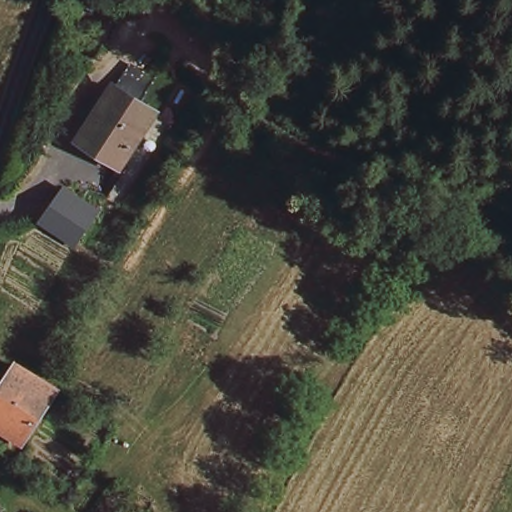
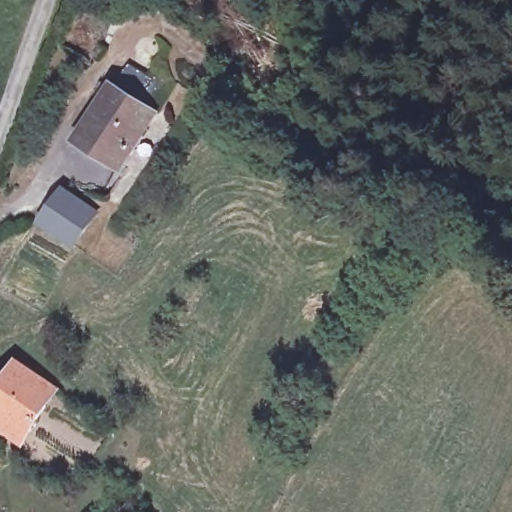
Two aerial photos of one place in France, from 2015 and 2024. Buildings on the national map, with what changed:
unchanged [(93,120),(113,91),(157,121),(121,171),(89,149),(79,142),(93,120)]
unchanged [(95,221),(76,254),(41,232),(63,201),(95,221)]
unchanged [(51,398),(22,442),(0,430),(0,388),(11,372),(51,398)]

